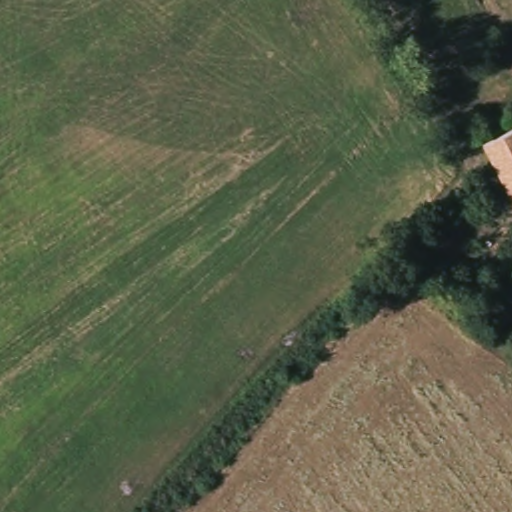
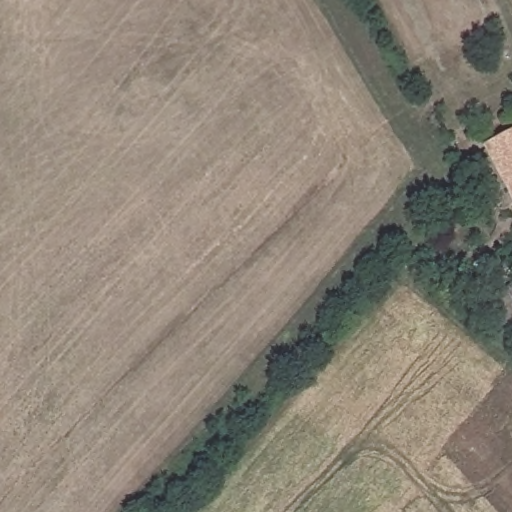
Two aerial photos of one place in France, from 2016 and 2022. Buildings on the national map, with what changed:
unchanged [(512,132),(512,202),(482,148),(512,132)]
unchanged [(479,308),(512,284),(512,326),(499,335),(479,308)]

